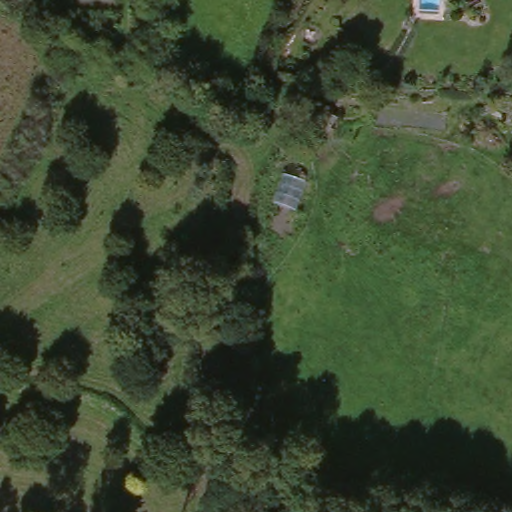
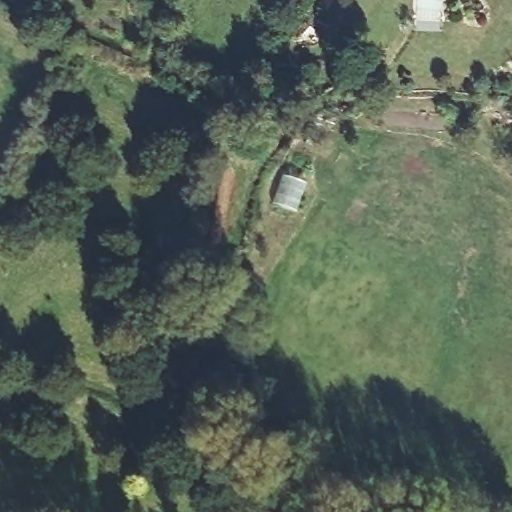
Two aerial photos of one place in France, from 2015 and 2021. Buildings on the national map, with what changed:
unchanged [(323,0),(327,0),(336,7),(318,30),(308,22),(323,0)]

